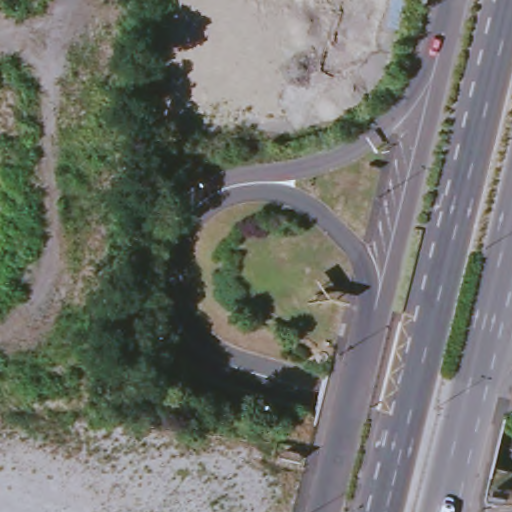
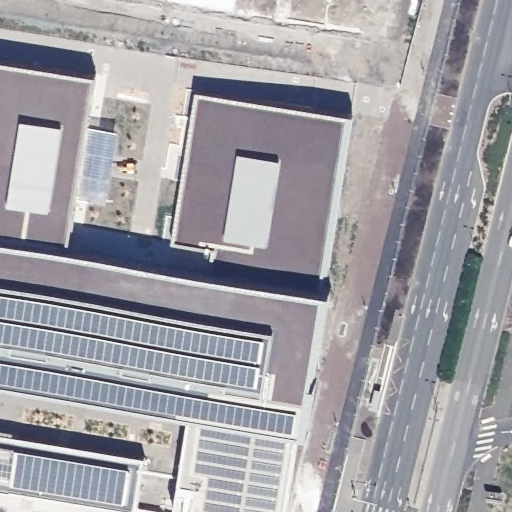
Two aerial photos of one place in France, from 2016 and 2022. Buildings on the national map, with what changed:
demolished [(285,17),(275,112),(227,107),(225,121),(163,114),(176,0),(212,0),(286,14),(285,17)]
demolished [(286,14),(212,0),(287,0),(286,14)]
new [(287,512),(172,512),(184,425),(0,394),(0,65),(92,81),(63,256),(160,275),(197,93),(352,120),(300,445),(287,512)]
new [(105,512),(0,495),(0,441),(143,465),(133,512),(105,512)]
demolished [(177,502),(197,507),(200,497),(180,493),(182,483),(202,488),(205,478),(185,472),(188,463),(207,468),(207,469),(267,484),(287,489),(285,498),(265,493),(262,504),(283,509),(282,512),(177,512),(175,511),(177,502)]
demolished [(62,481),(62,493),(70,494),(68,506),(60,505),(59,512),(0,512),(0,479),(0,475),(62,481)]
demolished [(84,512),(74,512),(75,503),(85,505),(84,512)]

